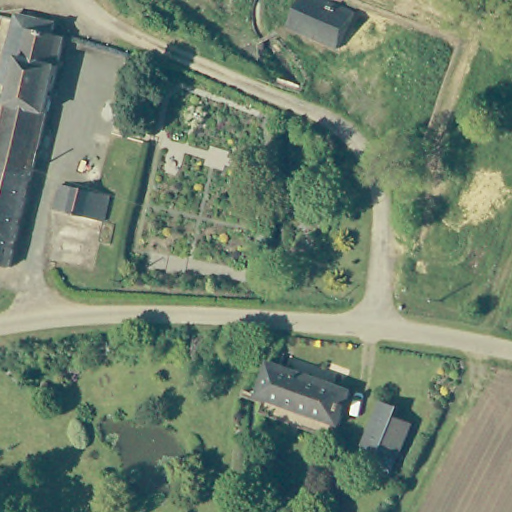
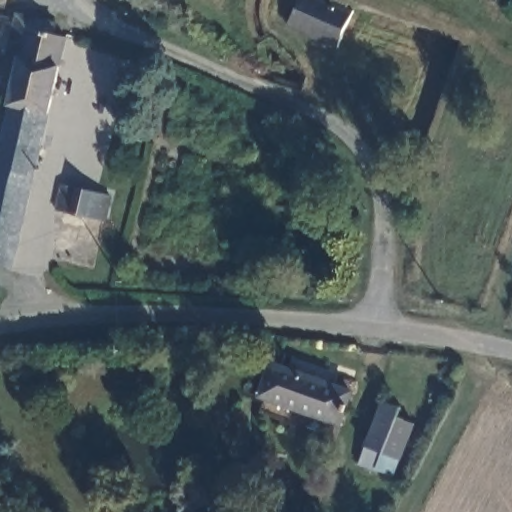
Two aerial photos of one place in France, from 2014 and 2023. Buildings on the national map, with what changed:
unchanged [(336,44),(284,22),(294,0),(338,0),(352,5),(336,44)]
unchanged [(53,16),(50,31),(61,34),(17,262),(0,259),(0,134),(5,106),(8,91),(0,89),(0,74),(15,7),(53,16)]
unchanged [(110,190),(102,217),(85,212),(66,207),(55,205),(62,177),(110,190)]
unchanged [(356,386),(340,425),(258,392),(268,350),(356,386)]
unchanged [(373,400),(389,407),(385,417),(395,421),(403,425),(388,460),(379,455),(371,452),(364,468),(347,461),(373,400)]

